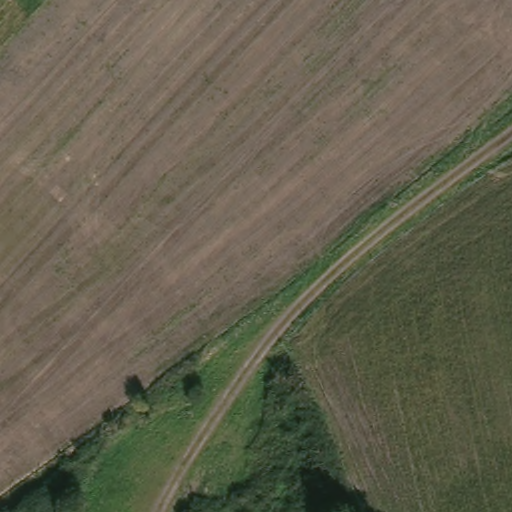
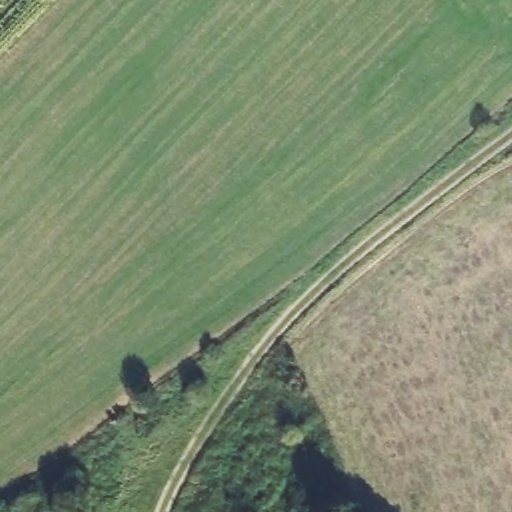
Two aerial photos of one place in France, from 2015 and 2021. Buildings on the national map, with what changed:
[]

